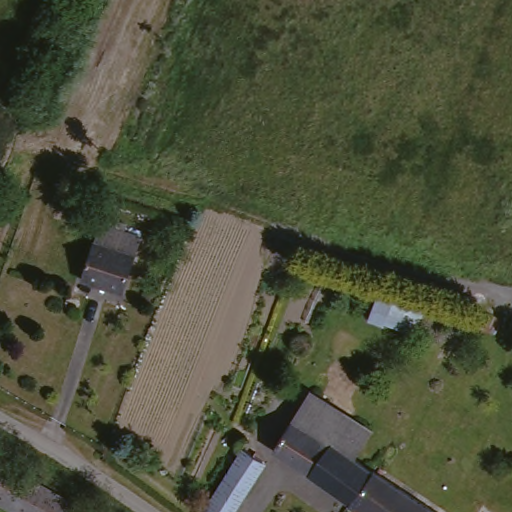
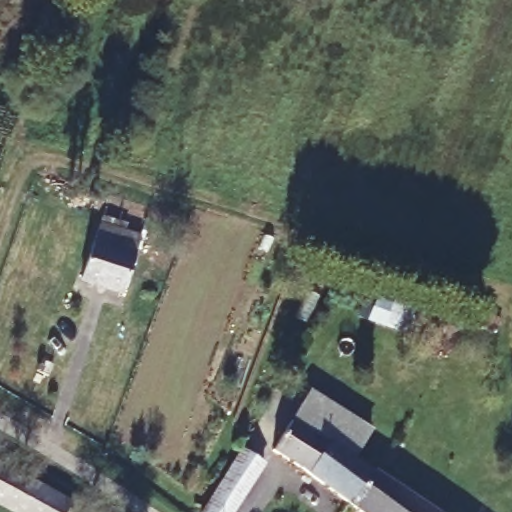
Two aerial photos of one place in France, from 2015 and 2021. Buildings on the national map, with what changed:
unchanged [(100,221),(140,233),(121,292),(81,279),(100,221)]
unchanged [(306,399),(312,391),(371,429),(352,458),(292,418),(306,399)]
unchanged [(268,453),(292,418),(352,458),(372,468),(348,505),(268,453)]
unchanged [(242,447),(263,463),(233,512),(201,512),(242,447)]
unchanged [(63,512),(13,512),(0,505),(0,462),(70,500),(63,512)]
unchanged [(436,512),(359,512),(348,505),(372,468),(382,475),(436,512)]

